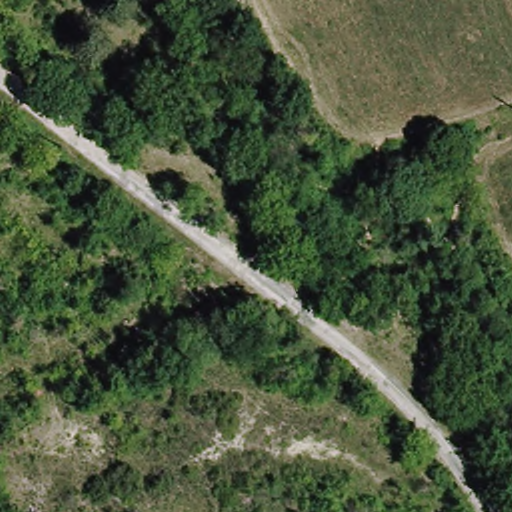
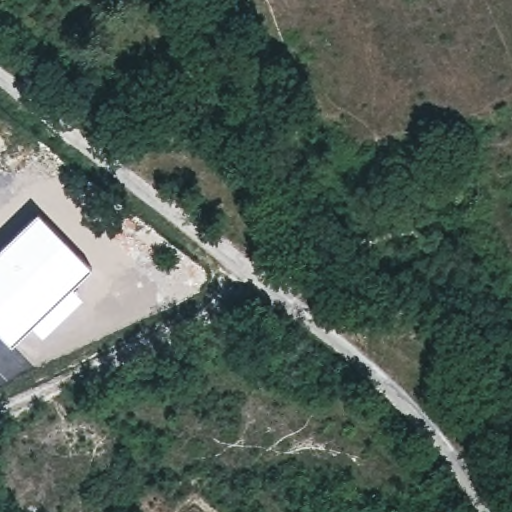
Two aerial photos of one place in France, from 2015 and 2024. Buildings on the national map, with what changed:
new [(42,335),(31,324),(10,343),(0,333),(0,247),(37,211),(91,265),(72,285),(83,297),(42,335)]

